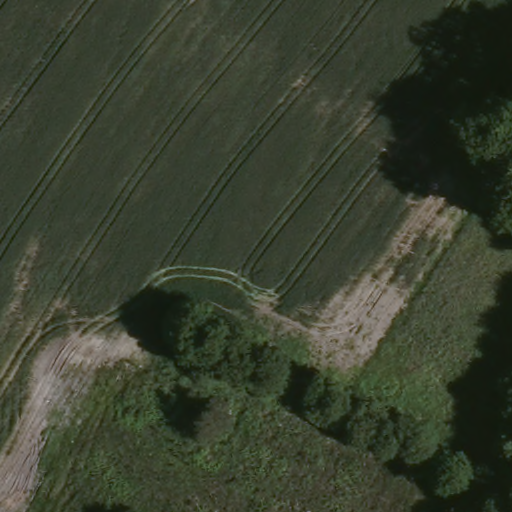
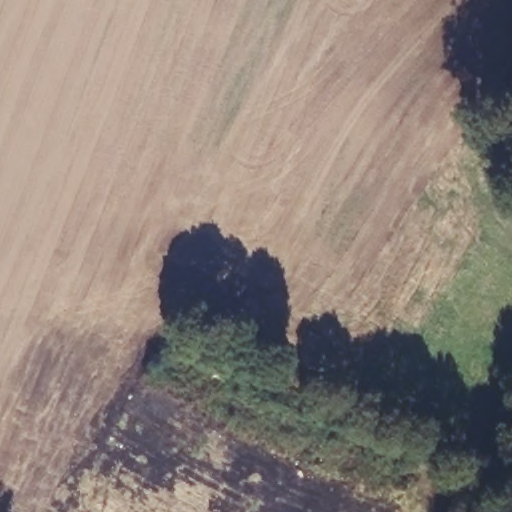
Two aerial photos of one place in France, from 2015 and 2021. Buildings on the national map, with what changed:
[]

